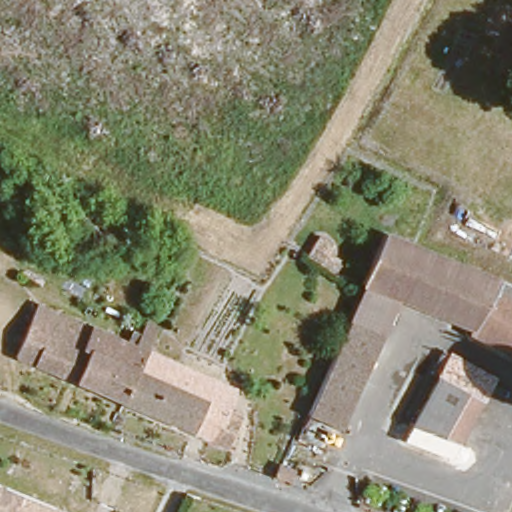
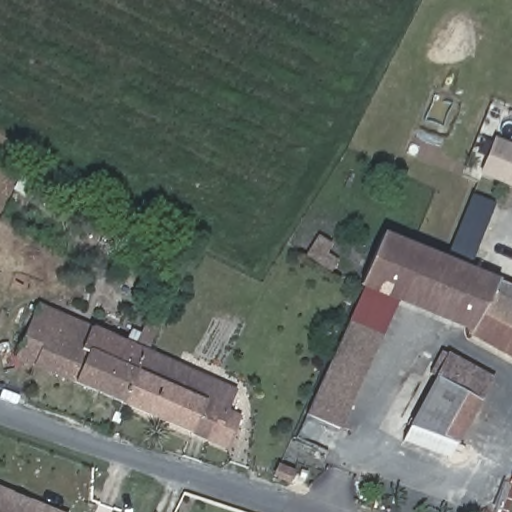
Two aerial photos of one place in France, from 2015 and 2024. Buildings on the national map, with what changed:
new [(478,175),(493,136),(512,144),(512,189),(478,175)]
unchanged [(97,215),(116,225),(104,249),(84,239),(97,215)]
unchanged [(457,322),(360,283),(363,276),(385,231),(416,242),(488,270),(457,322)]
unchanged [(315,280),(306,274),(295,266),(307,245),(320,252),(312,265),(321,271),(315,280)]
unchanged [(488,270),(512,280),(512,355),(463,333),(467,326),(457,322),(488,270)]
unchanged [(240,413),(226,445),(122,400),(17,353),(40,301),(132,341),(144,315),(159,321),(146,347),(215,377),(233,385),(224,406),(240,413)]
unchanged [(337,430),(302,413),(347,320),(381,336),(337,430)]
unchanged [(426,377),(435,362),(443,366),(445,362),(487,384),(450,448),(405,431),(434,382),(426,377)]
unchanged [(253,485),(257,473),(260,474),(271,478),(266,490),(254,486),(253,485)]
unchanged [(0,490),(9,494),(24,500),(49,511),(51,512),(0,512),(0,490)]
unchanged [(508,505),(512,506),(512,512),(505,512),(508,505)]

